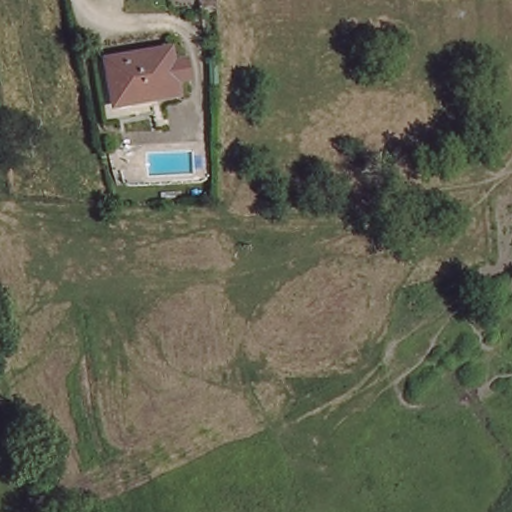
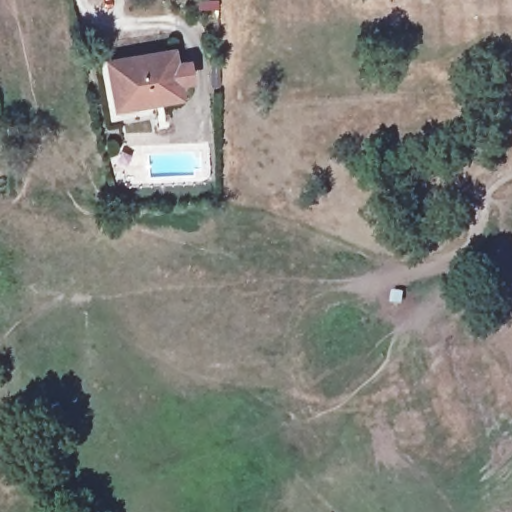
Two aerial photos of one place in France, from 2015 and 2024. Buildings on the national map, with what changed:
unchanged [(160,51),(163,65),(176,62),(180,79),(167,81),(171,99),(131,109),(128,105),(110,110),(99,67),(160,51)]

